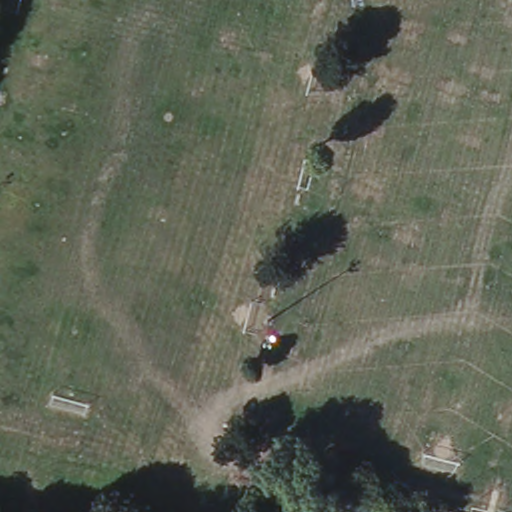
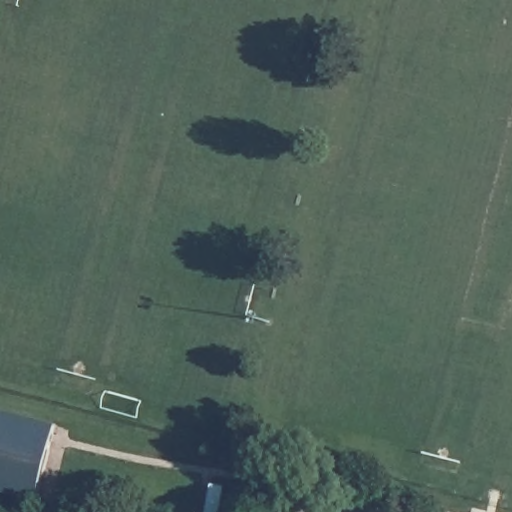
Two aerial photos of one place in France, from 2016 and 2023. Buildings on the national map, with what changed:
new [(32,511),(0,503),(0,410),(53,425),(32,511)]

